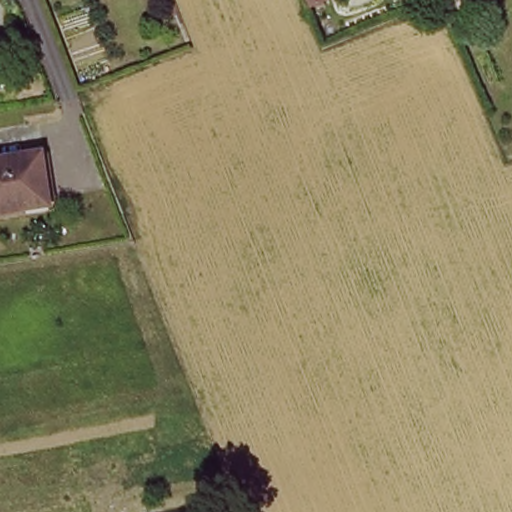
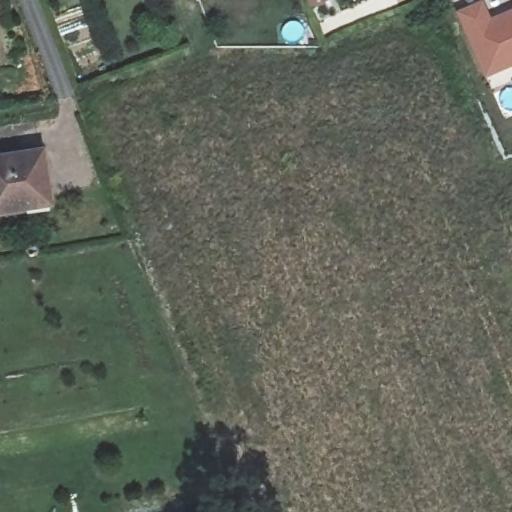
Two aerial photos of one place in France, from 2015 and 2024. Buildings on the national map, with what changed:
new [(311,9),(308,0),(333,0),(311,9)]
new [(492,20),(512,11),(512,69),(485,81),(457,15),(485,2),(492,20)]
unchanged [(45,151),(53,196),(28,200),(30,208),(0,212),(0,157),(45,151)]

